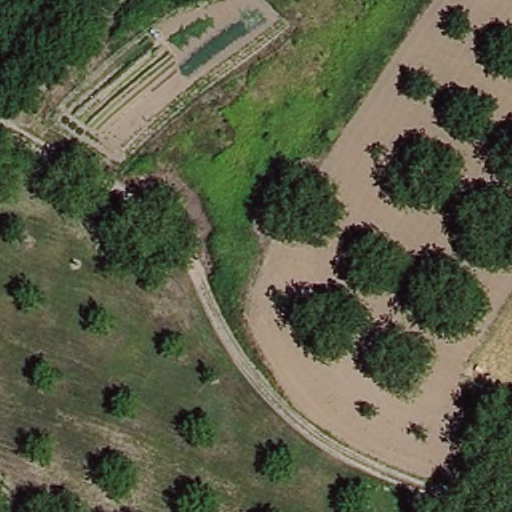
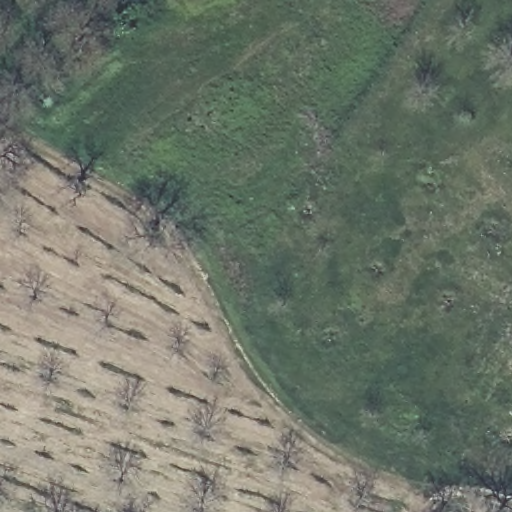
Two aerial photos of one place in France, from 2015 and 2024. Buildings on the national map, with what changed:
[]

